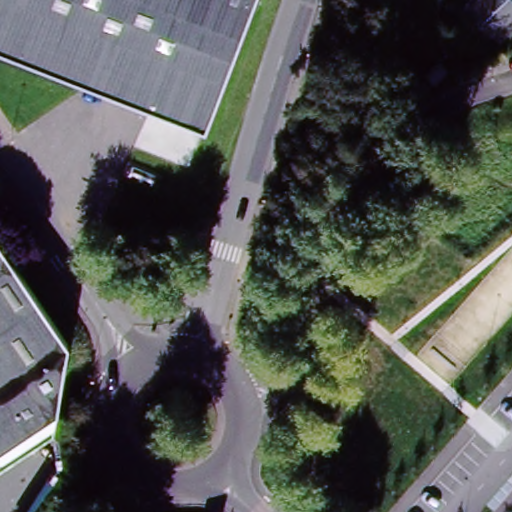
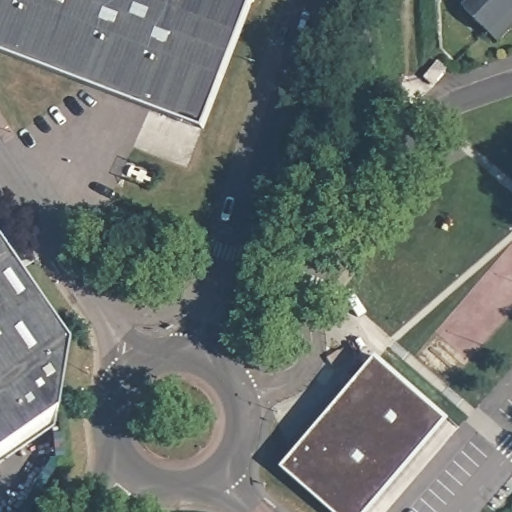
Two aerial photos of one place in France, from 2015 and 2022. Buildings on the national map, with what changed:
unchanged [(0,52),(0,0),(255,0),(204,130),(0,52)]
unchanged [(502,47),(465,10),(475,0),(512,0),(512,38),(502,47)]
unchanged [(433,89),(424,81),(438,65),(447,73),(433,89)]
unchanged [(56,411),(0,449),(0,245),(67,342),(56,411)]
new [(372,512),(330,512),(282,470),(379,358),(452,421),(372,512)]
unchanged [(0,468),(0,449),(56,411),(52,432),(0,468)]

